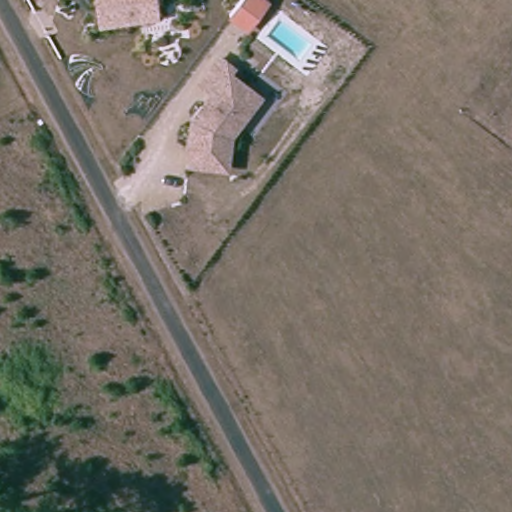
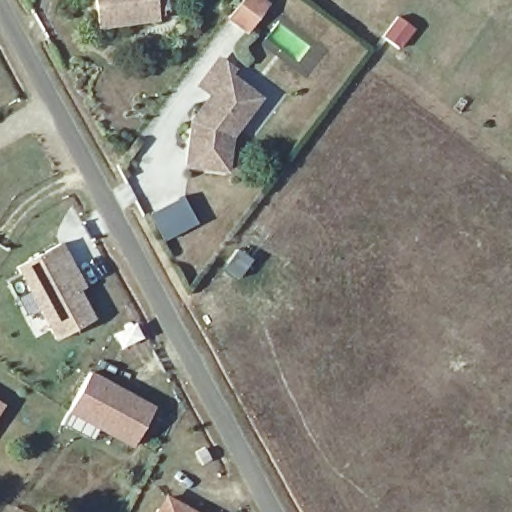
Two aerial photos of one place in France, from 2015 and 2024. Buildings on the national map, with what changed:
unchanged [(97,0),(154,0),(156,20),(142,21),(100,26),(97,0)]
unchanged [(259,0),(268,8),(248,33),(231,19),(246,0),(259,0)]
unchanged [(228,72),(224,77),(255,101),(224,139),(220,171),(181,165),(187,123),(207,96),(195,87),(215,62),(228,72)]
new [(74,263),(88,291),(81,295),(95,324),(57,343),(20,268),(65,246),(74,263)]
new [(93,373),(157,411),(135,448),(71,411),(93,373)]
new [(0,417),(0,402),(7,407),(0,417)]
new [(186,512),(163,512),(169,502),(186,512)]

